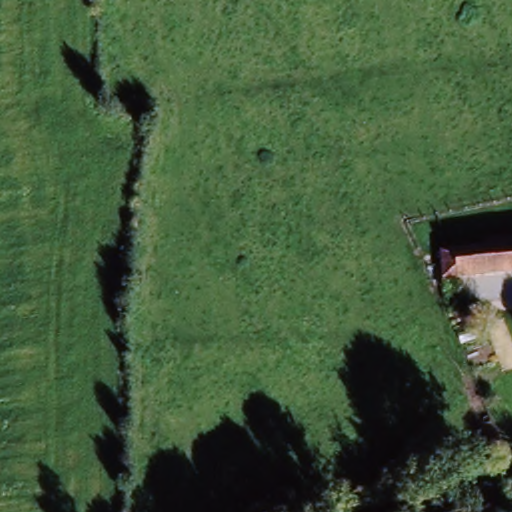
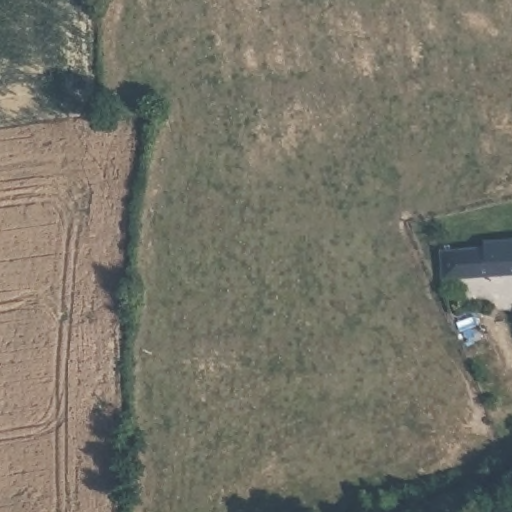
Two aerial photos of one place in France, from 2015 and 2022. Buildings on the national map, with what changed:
unchanged [(440,249),(486,246),(488,240),(512,239),(512,272),(442,278),(440,249)]

